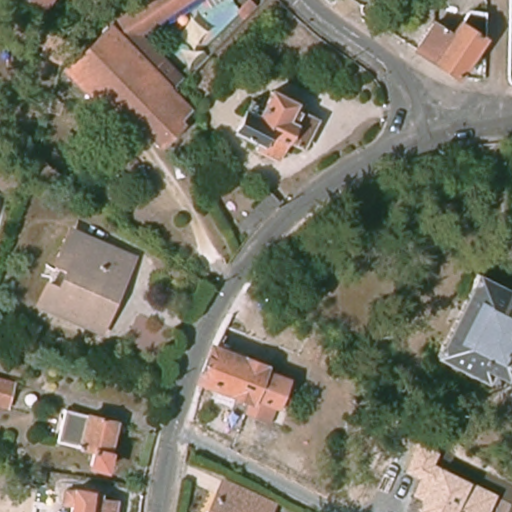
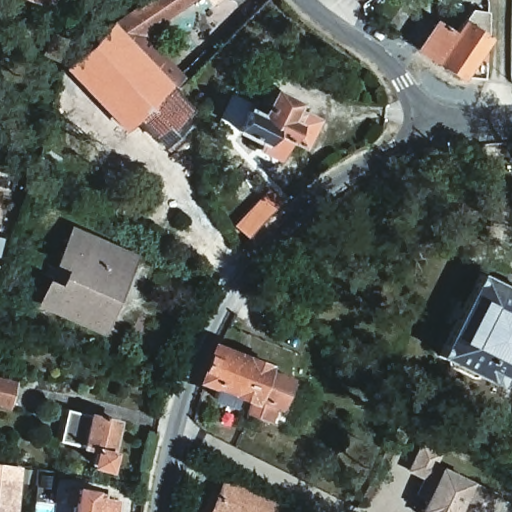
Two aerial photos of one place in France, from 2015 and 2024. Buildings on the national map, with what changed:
unchanged [(56,12),(30,3),(23,0),(60,0),(56,12)]
unchanged [(127,37),(127,35),(126,34),(113,22),(115,20),(145,0),(185,0),(155,20),(152,18),(140,27),(183,73),(173,82),(161,70),(127,37)]
unchanged [(486,13),(485,35),(458,75),(436,63),(415,48),(432,21),(453,35),(468,11),(486,13)]
unchanged [(91,97),(79,85),(69,74),(75,68),(70,62),(65,58),(52,53),(49,51),(57,30),(82,39),(92,30),(99,37),(113,22),(126,34),(127,35),(127,37),(161,70),(173,82),(178,88),(188,99),(179,108),(186,114),(164,135),(144,114),(125,131),(122,129),(91,97)]
unchanged [(291,106),(291,111),(317,117),(312,145),(293,141),(290,161),(267,158),(268,154),(246,149),(249,125),(251,115),(262,118),(266,101),(291,106)]
unchanged [(242,225),(272,193),(286,207),(254,236),(242,225)]
unchanged [(107,331),(95,326),(45,305),(53,284),(67,290),(76,271),(61,266),(74,236),(125,258),(136,263),(107,331)]
unchanged [(447,362),(437,356),(443,342),(473,285),(479,274),(491,281),(493,276),(512,286),(512,369),(507,378),(504,376),(498,386),(476,376),(473,379),(446,365),(447,362)]
unchanged [(241,414),(245,405),(224,396),(216,393),(222,382),(201,374),(207,360),(214,347),(239,358),(261,368),(259,372),(292,387),(289,396),(277,390),(270,409),(263,423),(241,414)]
unchanged [(0,383),(15,387),(10,408),(0,405),(0,383)]
unchanged [(88,464),(92,450),(61,441),(69,410),(121,425),(113,456),(117,456),(114,471),(88,464)]
unchanged [(417,512),(423,499),(413,495),(420,480),(405,473),(418,444),(439,454),(437,466),(468,482),(497,496),(489,512),(417,512)]
new [(15,512),(0,512),(0,475),(19,477),(15,512)]
unchanged [(275,512),(211,512),(218,497),(227,480),(278,504),(275,512)]
unchanged [(302,482),(348,504),(344,512),(333,512),(296,495),(302,482)]
unchanged [(72,501),(74,491),(82,493),(83,490),(99,493),(98,500),(122,506),(121,512),(79,512),(81,502),(72,501)]

